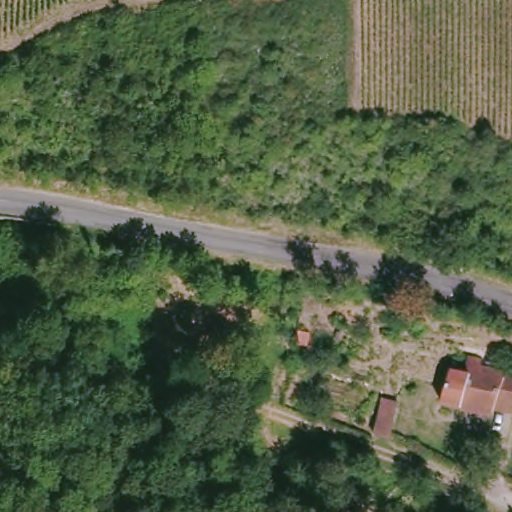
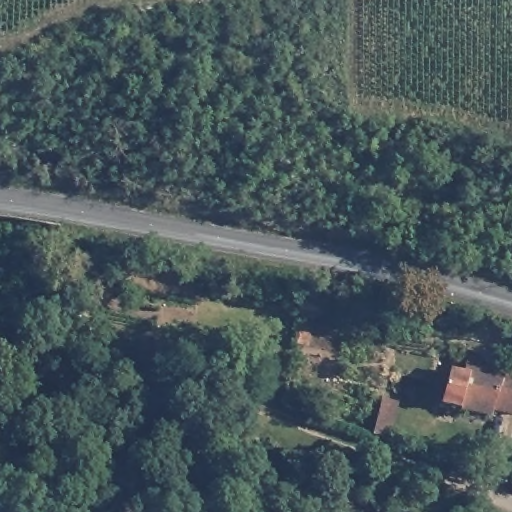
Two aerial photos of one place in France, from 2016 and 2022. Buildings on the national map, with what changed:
unchanged [(462,372),(466,356),(482,360),(481,363),(512,371),(512,412),(494,407),(492,413),(441,403),(451,370),(462,372)]
unchanged [(390,437),(373,433),(382,399),(398,402),(390,437)]

